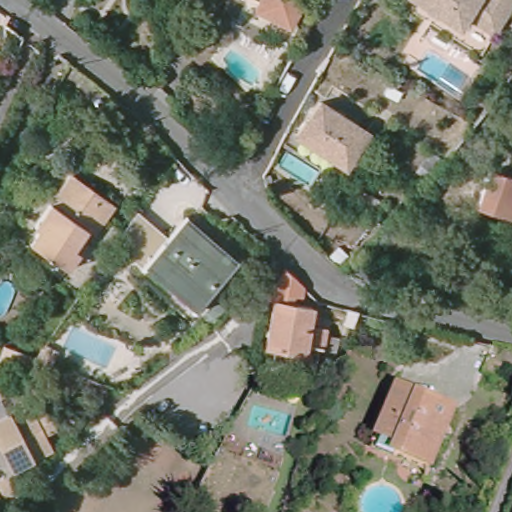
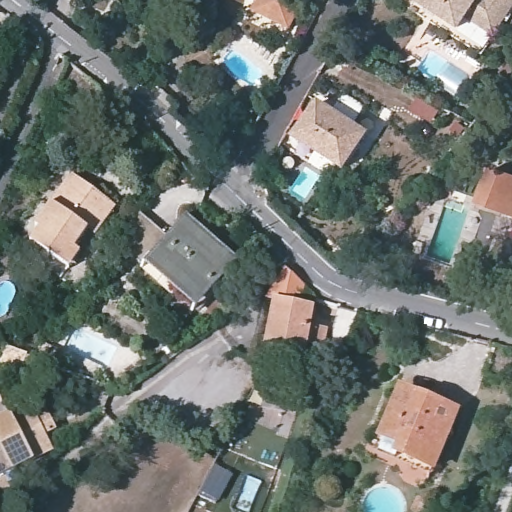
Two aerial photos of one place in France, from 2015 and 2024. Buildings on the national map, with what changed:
unchanged [(251,6),(254,0),(304,0),(291,26),(251,6)]
unchanged [(462,23),(421,0),(512,0),(504,15),(498,27),(469,11),(462,23)]
unchanged [(359,132),(335,166),(286,133),(309,100),(359,132)]
unchanged [(480,205),(492,171),(512,177),(512,216),(480,205)]
unchanged [(60,267),(54,274),(31,257),(36,250),(22,239),(31,226),(28,223),(60,180),(65,173),(82,184),(110,204),(97,221),(88,235),(81,229),(68,246),(74,251),(62,268),(60,267)]
unchanged [(189,307),(137,260),(146,251),(180,212),(232,258),(211,282),(198,295),(189,307)]
unchanged [(323,328),(320,347),(316,347),(312,368),(297,365),(299,352),(265,344),(262,342),(270,299),(260,297),(282,268),(300,285),(299,295),(292,294),(290,303),(308,306),(305,325),(323,328)]
unchanged [(1,360),(7,343),(28,352),(22,368),(1,360)]
unchanged [(391,385),(453,408),(430,471),(425,469),(424,472),(373,450),(378,439),(372,436),(391,385)]
unchanged [(0,472),(0,414),(27,400),(40,394),(55,425),(42,431),(50,447),(0,472)]

